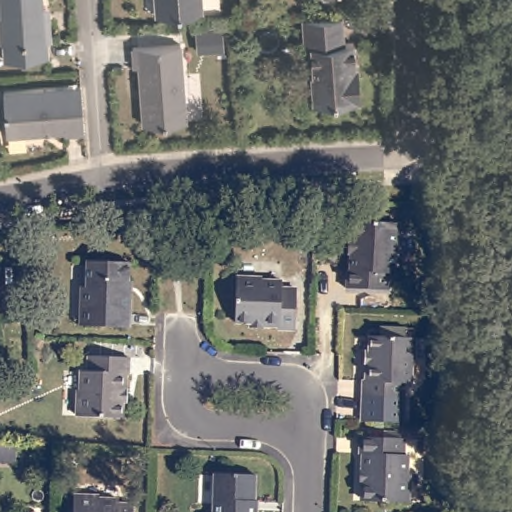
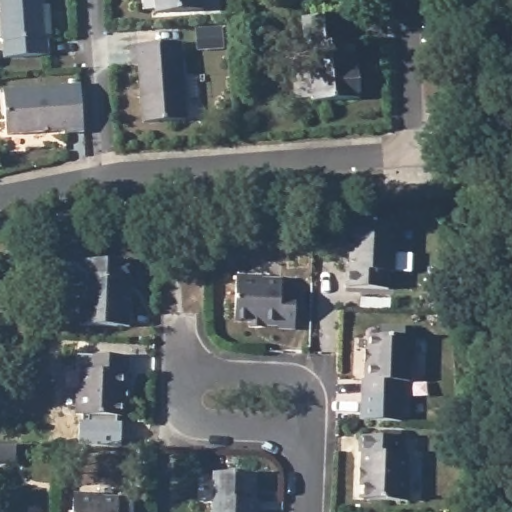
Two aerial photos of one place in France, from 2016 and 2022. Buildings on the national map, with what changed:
unchanged [(7,22),(6,0),(48,0),(49,23),(55,22),(55,31),(56,44),(52,44),(53,59),(9,62),(8,47),(5,42),(4,27),(7,22)]
unchanged [(156,20),(155,0),(203,0),(204,16),(156,20)]
unchanged [(347,19),(348,46),(358,45),(361,81),(362,81),(363,104),(316,106),(314,79),(317,79),(315,49),(308,49),(307,21),(347,19)]
unchanged [(180,42),(181,54),(186,121),(143,125),(139,66),(134,67),(132,45),(180,42)]
unchanged [(83,139),(66,140),(65,137),(7,140),(4,100),(80,94),(83,139)]
unchanged [(397,221),(396,250),(393,250),(392,270),(387,270),(386,286),(344,285),(345,267),(347,267),(348,251),(346,251),(347,236),(352,236),(353,219),(397,221)]
unchanged [(79,285),(84,285),(86,260),(128,263),(127,292),(130,292),(128,327),(77,325),(79,285)]
unchanged [(250,330),(250,325),(234,324),(235,279),(260,280),(260,282),(280,283),(280,291),(295,291),(293,330),(277,330),(277,328),(262,328),(262,330),(250,330)]
unchanged [(378,340),(379,330),(404,330),(403,340),(413,340),(412,365),(410,365),(409,385),(402,385),(399,425),(361,424),(362,382),(365,381),(365,367),(362,367),(362,353),(368,354),(369,339),(378,340)]
unchanged [(126,401),(120,401),(119,416),(74,414),(76,390),(77,390),(79,370),(86,370),(87,355),(127,357),(127,372),(124,372),(123,389),(126,390),(126,401)]
unchanged [(361,451),(358,451),(358,435),(401,436),(401,452),(406,452),(405,472),(408,472),(407,500),(362,498),(362,481),(357,481),(357,467),(361,467),(361,451)]
unchanged [(17,463),(0,462),(0,446),(17,447),(17,463)]
unchanged [(258,475),(257,502),(255,502),(255,512),(214,512),(216,474),(258,475)]
unchanged [(96,496),(96,500),(116,500),(117,505),(131,506),(130,512),(71,512),(72,495),(96,496)]

